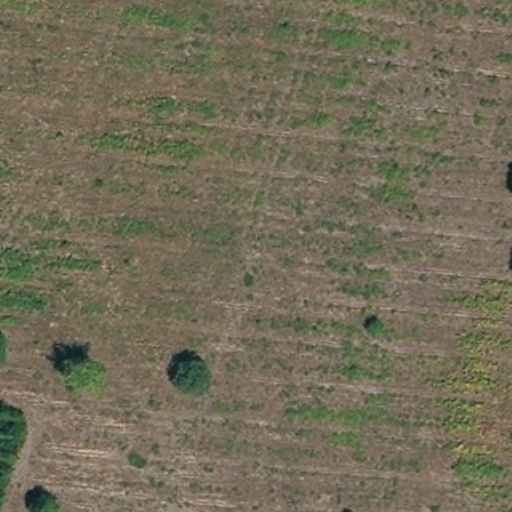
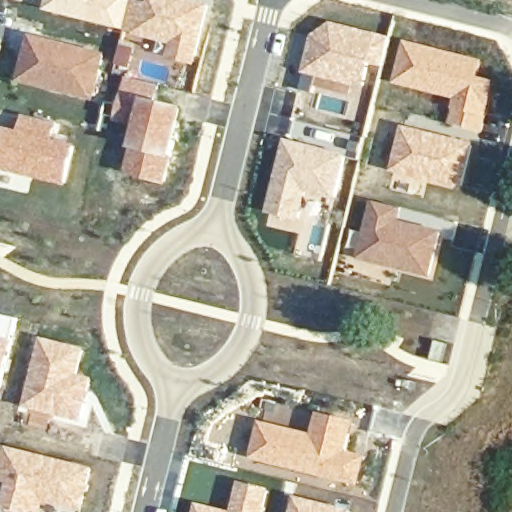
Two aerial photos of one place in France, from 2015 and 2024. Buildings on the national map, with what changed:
new [(132,0),(124,31),(44,10),(47,0),(132,0)]
new [(132,0),(144,0),(148,1),(148,0),(204,0),(212,2),(197,66),(153,53),(155,45),(123,37),(124,31),(132,0)]
new [(313,35),(332,19),(393,35),(384,68),(375,65),(368,91),(303,74),(313,35)]
new [(31,33),(108,53),(96,103),(18,83),(31,33)]
new [(405,39),(487,59),(482,75),(499,79),(486,133),(449,124),(454,99),(394,84),(405,39)]
new [(108,101),(119,104),(127,79),(155,86),(153,97),(146,95),(136,128),(104,119),(108,101)]
new [(136,128),(146,95),(153,97),(187,108),(175,159),(132,148),(136,128)]
new [(18,129),(24,113),(63,124),(59,138),(80,144),(69,187),(0,170),(0,147),(5,126),(18,129)]
new [(404,124),(477,143),(464,192),(391,174),(404,124)]
new [(287,139),(349,154),(338,202),(310,195),(305,234),(265,224),(287,139)]
new [(132,148),(175,159),(168,185),(126,175),(132,148)]
new [(352,229),(363,232),(373,199),(404,209),(402,217),(444,229),(431,279),(358,259),(359,251),(347,248),(352,229)]
new [(1,391),(0,390),(0,313),(19,318),(1,391)]
new [(41,336),(88,348),(81,373),(94,377),(83,423),(21,407),(41,336)]
new [(270,422),(274,423),(287,426),(290,427),(291,423),(263,414),(268,399),(305,409),(299,429),(311,432),(318,410),(358,419),(351,449),(369,454),(361,487),(250,459),(262,419),(270,422)]
new [(96,467),(83,512),(74,512),(46,506),(44,512),(18,512),(1,508),(7,483),(0,481),(0,453),(3,444),(96,467)]
new [(196,500),(230,509),(239,479),(273,489),(267,512),(193,512),(196,500)]
new [(294,494),(354,510),(353,512),(289,512),(294,494)]

